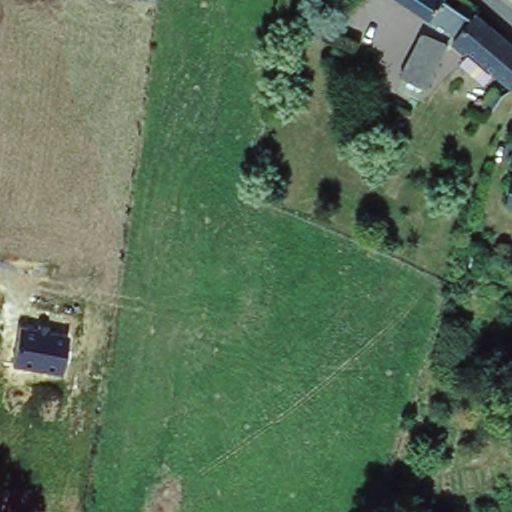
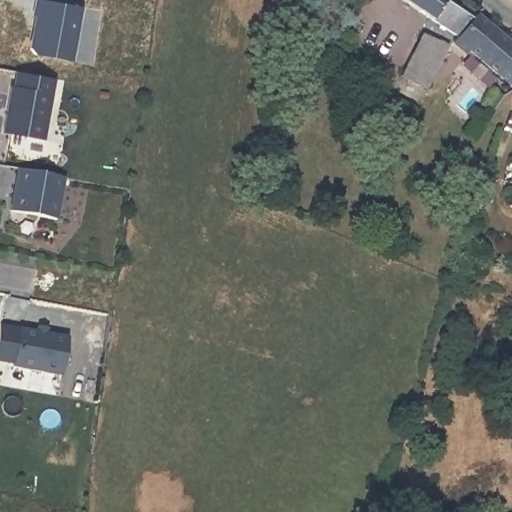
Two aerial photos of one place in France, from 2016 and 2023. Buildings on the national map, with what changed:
new [(84,7),(73,63),(35,55),(30,48),(35,17),(33,16),(36,0),(48,0),(84,7)]
new [(156,1),(154,0),(157,0),(156,1)]
unchanged [(470,44),(466,50),(451,38),(454,33),(410,0),(450,0),(468,14),(474,8),(512,40),(512,76),(470,44)]
unchanged [(422,27),(447,42),(425,84),(398,72),(399,69),(422,27)]
new [(46,137),(4,129),(14,83),(15,83),(19,68),(58,75),(46,137)]
unchanged [(509,163),(512,154),(512,163),(509,163)]
new [(59,216),(13,208),(21,165),(67,174),(59,216)]
unchanged [(506,207),(512,187),(512,209),(506,207)]
unchanged [(64,376),(12,367),(21,327),(39,330),(39,326),(50,328),(50,332),(69,335),(64,376)]

